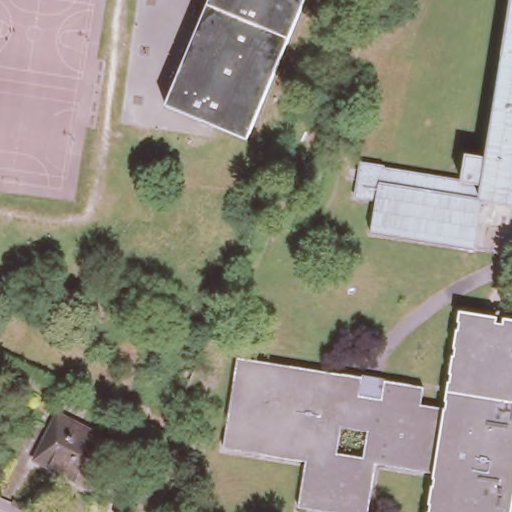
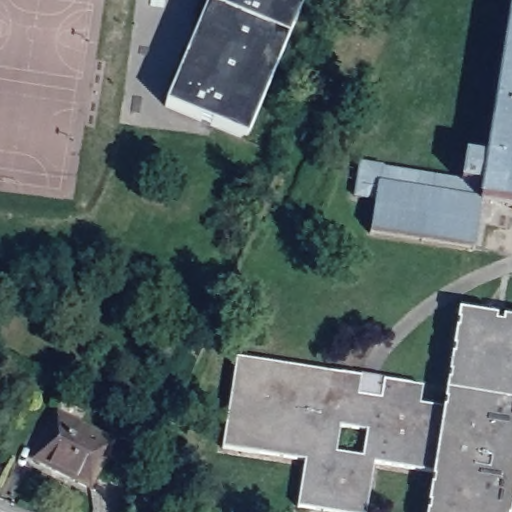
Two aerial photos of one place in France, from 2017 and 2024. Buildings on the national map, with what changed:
unchanged [(167,104),(210,0),(306,0),(249,138),(167,104)]
unchanged [(473,245),(369,227),(375,195),(353,191),(360,160),(383,164),(382,166),(460,178),(465,152),(485,155),(512,0),(512,201),(483,196),(473,245)]
unchanged [(460,312),(512,320),(512,512),(431,512),(437,472),(375,463),(368,512),(336,512),(302,507),(309,459),(222,445),(236,352),(361,371),(389,375),(427,381),(425,399),(446,402),(460,312)]
unchanged [(54,410),(110,439),(87,484),(30,455),(54,410)]

